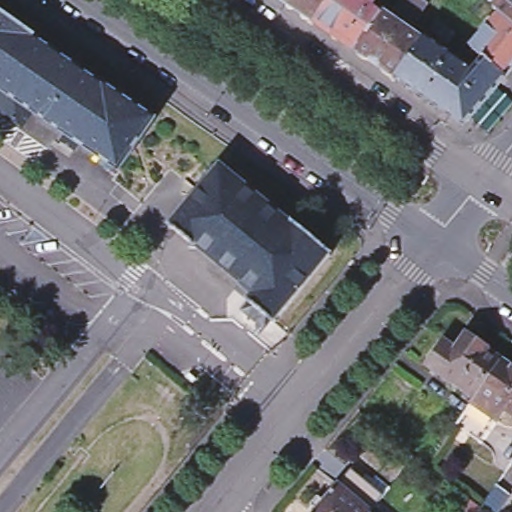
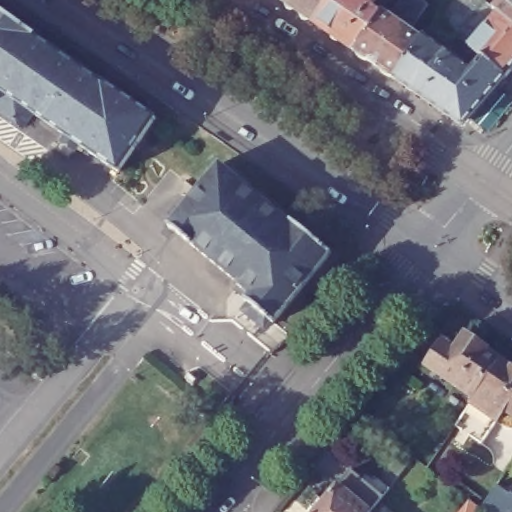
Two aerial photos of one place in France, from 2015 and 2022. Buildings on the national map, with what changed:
unchanged [(280,0),(329,0),(313,23),(280,0)]
unchanged [(375,0),(370,8),(380,15),(355,51),(313,23),(329,0),(375,0)]
unchanged [(402,0),(421,0),(430,6),(414,26),(415,34),(414,36),(422,42),(396,80),(355,51),(380,15),(385,7),(392,12),(402,0)]
unchanged [(501,15),(495,10),(504,0),(512,0),(512,24),(501,15)]
unchanged [(0,8),(43,38),(43,40),(108,85),(109,83),(162,119),(125,173),(85,145),(82,149),(70,140),(72,136),(40,114),(29,129),(0,110),(0,8)]
unchanged [(506,78),(485,60),(472,49),(501,15),(512,24),(512,71),(506,78)]
unchanged [(448,48),(430,31),(437,20),(457,37),(448,48)]
unchanged [(396,80),(422,42),(424,39),(472,74),(485,60),(506,78),(465,127),(396,80)]
unchanged [(278,324),(275,322),(268,330),(246,312),(253,304),(250,301),(254,296),(242,286),(244,285),(173,227),(225,166),(295,223),(295,222),(336,256),(278,324)]
unchanged [(423,362),(441,334),(453,343),(461,331),(465,333),(471,330),(478,336),(478,342),(482,345),(481,346),(496,357),(470,394),(423,362)]
unchanged [(208,346),(216,335),(231,347),(223,358),(208,346)]
unchanged [(451,420),(467,398),(470,394),(496,357),(512,368),(512,414),(500,406),(492,416),(477,438),(451,420)]
unchanged [(342,490),(352,479),(373,497),(364,508),(369,512),(324,512),(342,490)]
unchanged [(496,485),(510,494),(497,512),(488,512),(483,509),(480,512),(459,512),(465,505),(470,499),(480,507),(496,485)]

